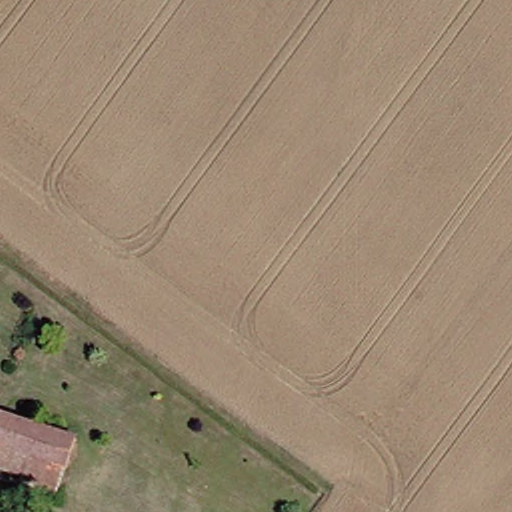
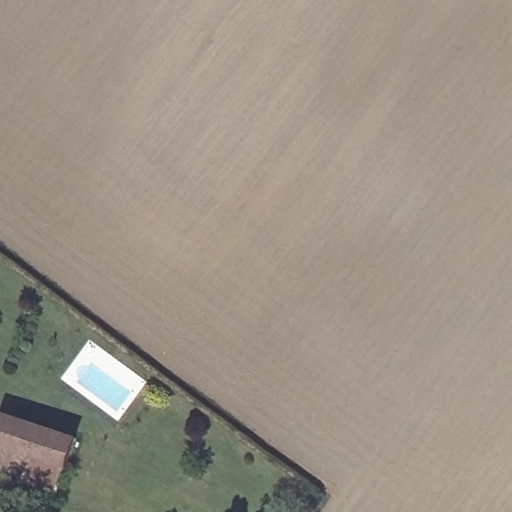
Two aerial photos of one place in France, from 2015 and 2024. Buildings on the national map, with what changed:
unchanged [(10,453),(22,426),(90,453),(79,484),(15,456),(10,453)]
unchanged [(15,456),(79,484),(76,491),(71,503),(7,475),(10,469),(15,456)]

